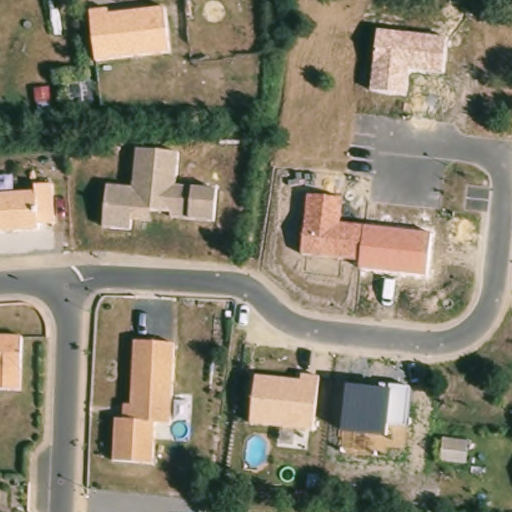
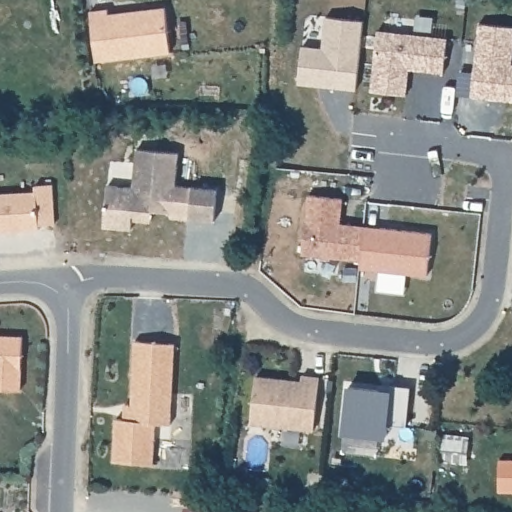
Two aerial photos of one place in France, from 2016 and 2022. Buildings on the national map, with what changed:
unchanged [(109,9),(109,15),(164,10),(169,56),(95,63),(89,12),(109,9)]
new [(357,90),(299,83),(304,46),(322,48),(326,16),(364,20),(357,90)]
new [(471,96),(479,22),(512,26),(512,55),(511,64),(512,64),(512,100),(507,100),(490,98),(471,96)]
unchanged [(444,71),(410,69),(408,93),(371,90),(377,31),(447,38),(444,71)]
unchanged [(136,150),(178,154),(175,187),(215,189),(213,222),(170,220),(171,214),(151,212),(150,225),(130,224),(130,233),(102,231),(105,186),(133,189),(136,150)]
unchanged [(39,183),(56,182),(59,222),(43,223),(44,228),(0,231),(0,193),(40,190),(39,183)]
unchanged [(428,274),(359,267),(360,259),(302,254),(308,195),(344,198),(342,223),(432,232),(428,274)]
unchanged [(23,388),(0,388),(0,334),(24,334),(23,388)]
unchanged [(134,404),(135,339),(175,340),(173,421),(158,421),(157,462),(117,461),(118,419),(126,419),(127,404),(134,404)]
unchanged [(315,431),(252,425),(256,376),(301,381),(302,375),(319,375),(315,431)]
unchanged [(409,426),(389,425),(388,437),(343,431),(346,385),(389,389),(389,385),(411,386),(409,426)]
unchanged [(467,438),(466,456),(441,454),(442,437),(467,438)]

